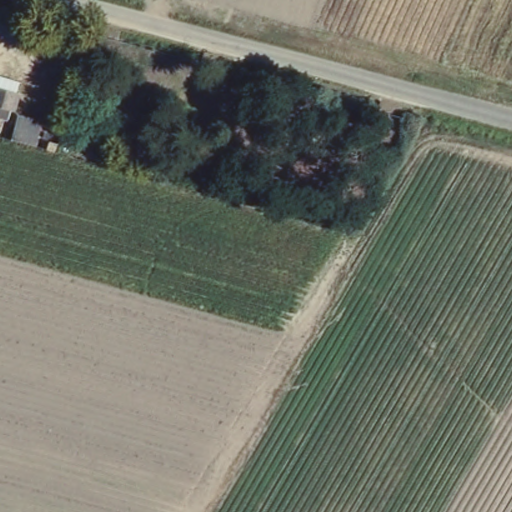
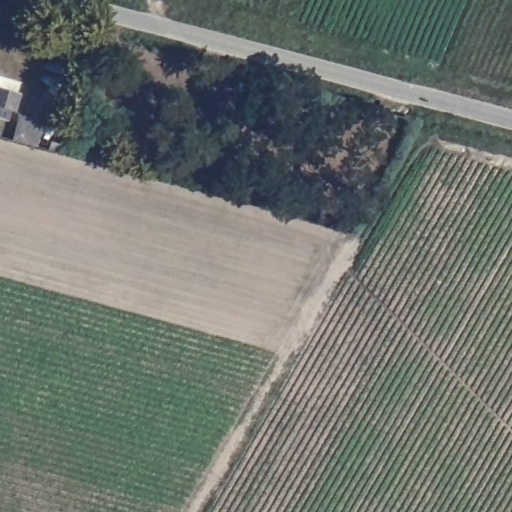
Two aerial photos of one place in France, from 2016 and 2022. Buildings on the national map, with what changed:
unchanged [(0,120),(0,86),(2,87),(5,76),(23,81),(11,123),(0,120)]
unchanged [(38,146),(20,141),(26,120),(44,125),(38,146)]

